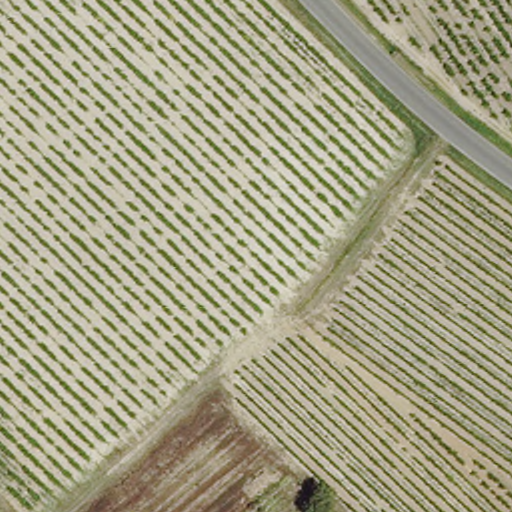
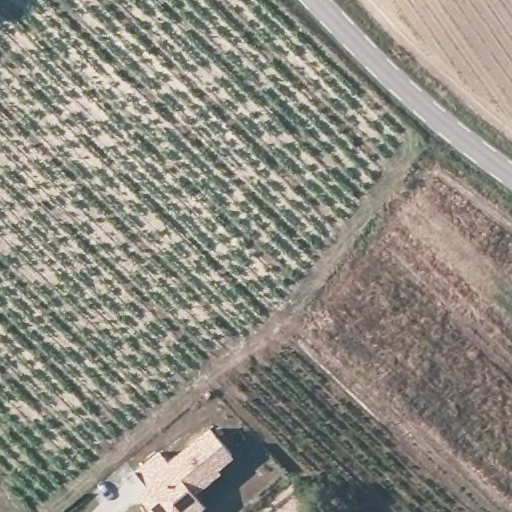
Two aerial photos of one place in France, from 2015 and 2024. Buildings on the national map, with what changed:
new [(220,471),(223,475),(197,496),(207,508),(202,512),(151,512),(140,497),(150,489),(135,471),(160,451),(170,462),(211,428),(236,459),(220,471)]

